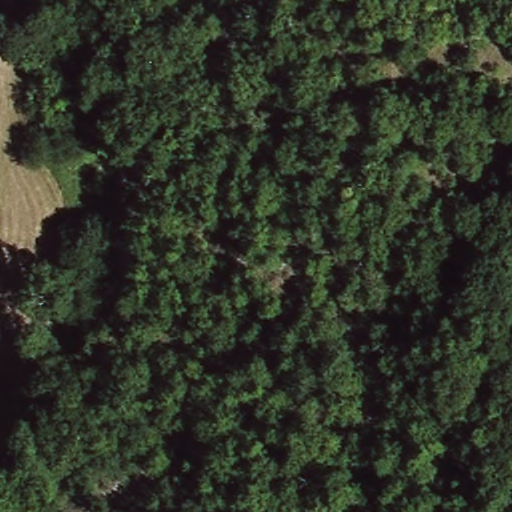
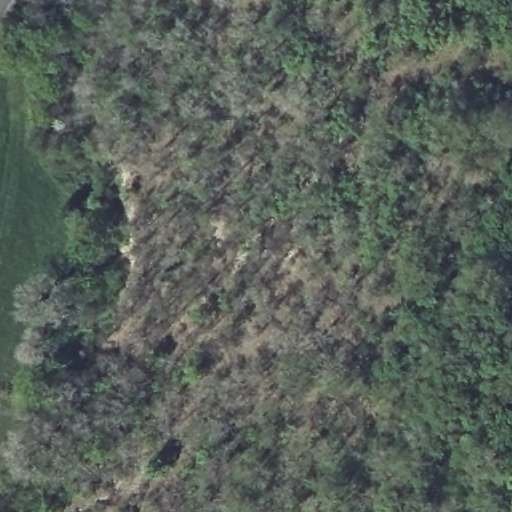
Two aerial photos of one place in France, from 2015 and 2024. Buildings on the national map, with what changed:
[]

